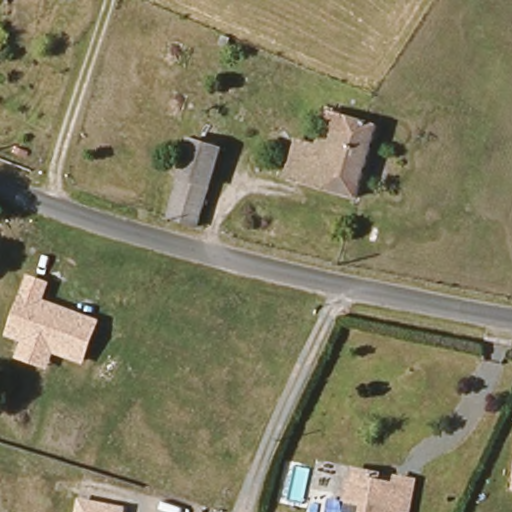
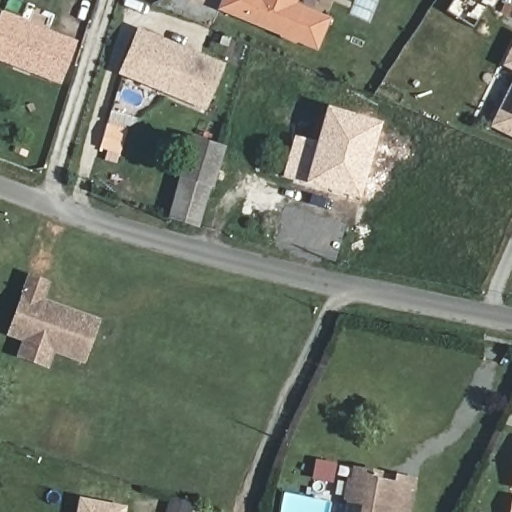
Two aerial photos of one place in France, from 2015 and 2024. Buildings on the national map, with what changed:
new [(316,30),(309,46),(291,39),(287,41),(277,36),(276,33),(216,9),(219,0),(288,0),(285,7),(311,17),(320,21),(316,30)]
new [(0,63),(0,13),(76,42),(59,85),(0,63)]
new [(116,75),(136,28),(225,65),(205,111),(116,75)]
demolished [(181,55),(165,46),(173,30),(189,35),(181,55)]
unchanged [(284,179),(297,141),(311,145),(325,111),(359,122),(378,129),(353,203),(284,179)]
new [(134,119),(126,130),(117,161),(106,158),(108,151),(100,149),(110,112),(134,119)]
unchanged [(197,225),(170,217),(198,140),(222,149),(197,225)]
unchanged [(85,365),(52,355),(48,370),(12,358),(19,341),(2,336),(26,274),(50,282),(42,301),(100,319),(85,365)]
unchanged [(357,473),(375,475),(375,485),(396,489),(398,480),(416,484),(411,512),(350,512),(357,473)]
new [(512,496),(512,512),(509,512),(512,496)]
unchanged [(122,512),(75,512),(77,498),(124,505),(122,512)]

